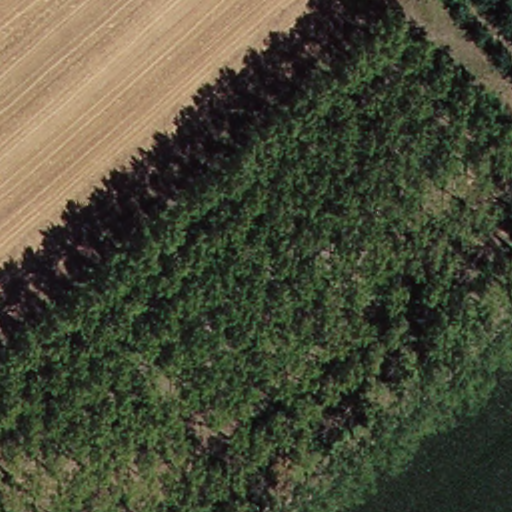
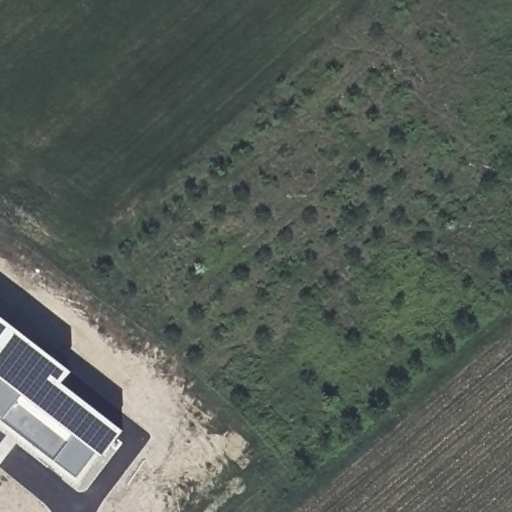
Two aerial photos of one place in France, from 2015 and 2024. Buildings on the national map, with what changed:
new [(65,383),(125,430),(104,456),(97,450),(79,477),(5,419),(0,416),(0,314),(74,372),(65,383)]

